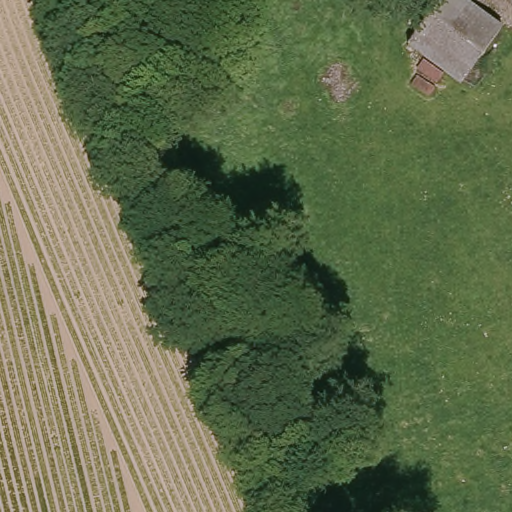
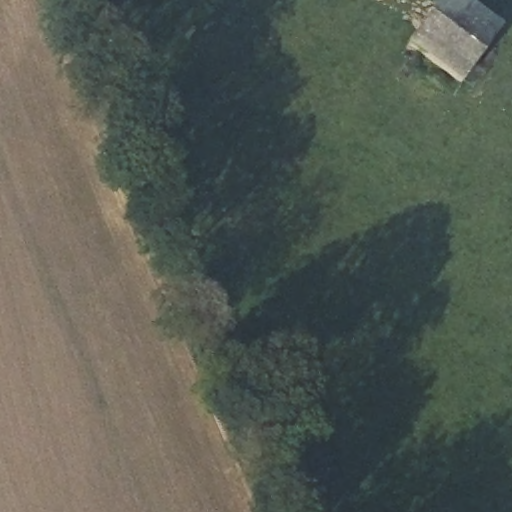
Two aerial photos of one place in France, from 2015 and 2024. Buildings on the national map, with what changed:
unchanged [(438,0),(465,0),(507,27),(461,88),(405,48),(438,0)]

